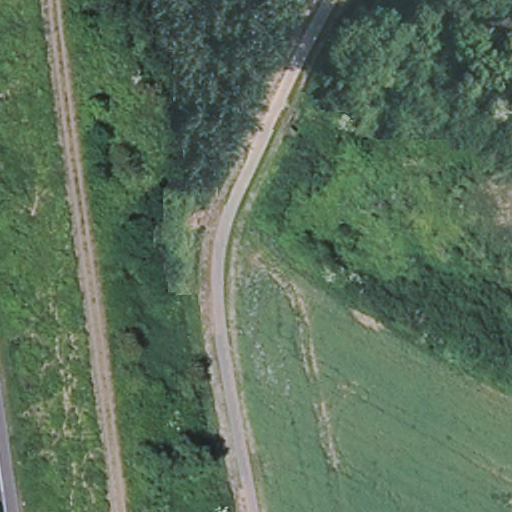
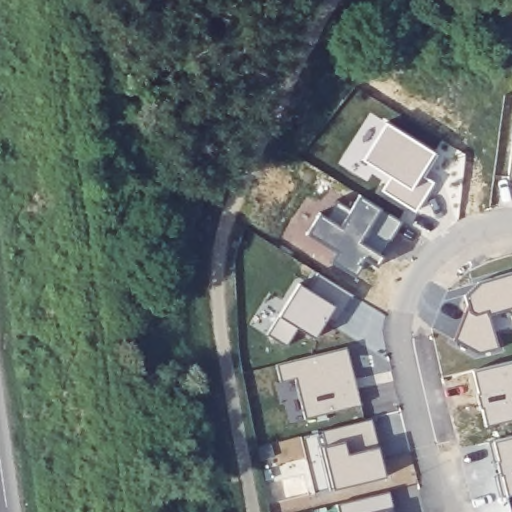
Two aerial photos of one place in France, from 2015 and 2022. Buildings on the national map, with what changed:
new [(362,159),(365,160),(386,124),(385,123),(385,122),(425,146),(437,155),(424,176),(420,174),(433,183),(415,212),(381,191),(390,177),(362,159)]
new [(512,145),(512,178),(508,178),(512,145)]
new [(320,214),(325,217),(336,201),(350,210),(360,196),(398,220),(383,244),(365,233),(360,242),(382,256),(382,257),(381,256),(376,265),(377,265),(376,266),(363,258),(360,264),(358,263),(351,274),(331,262),(336,253),(307,234),(320,214)]
new [(298,283),(307,289),(318,272),(353,295),(343,312),(335,307),(315,339),(297,328),(286,347),(267,334),(298,283)]
new [(478,354),(453,340),(467,305),(464,295),(480,290),(478,282),(512,272),(512,304),(488,311),(500,349),(478,354)]
new [(276,365),(346,347),(355,379),(350,380),(352,390),(356,389),(360,405),(305,419),(295,378),(280,382),(276,365)]
new [(481,408),(480,408),(476,393),(478,393),(472,371),(512,361),(512,419),(485,425),(481,408)]
new [(325,446),(321,431),(372,418),(379,447),(380,453),(386,477),(330,490),(320,447),(325,446)]
new [(512,436),(512,494),(501,497),(496,475),(500,474),(496,462),(493,462),(488,442),(512,436)]
new [(336,504),(390,492),(395,512),(338,512),(336,504)]
new [(510,512),(512,511),(512,512),(510,512)]

